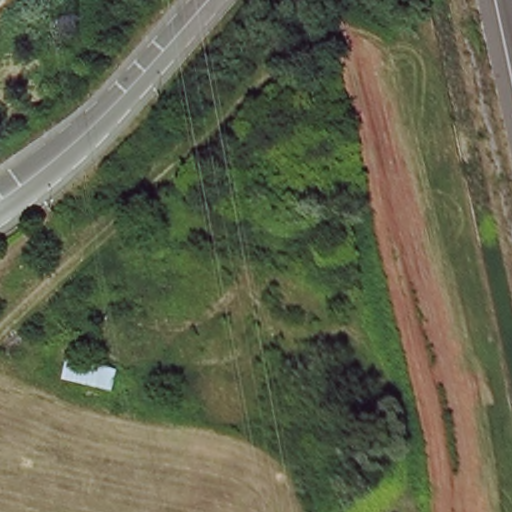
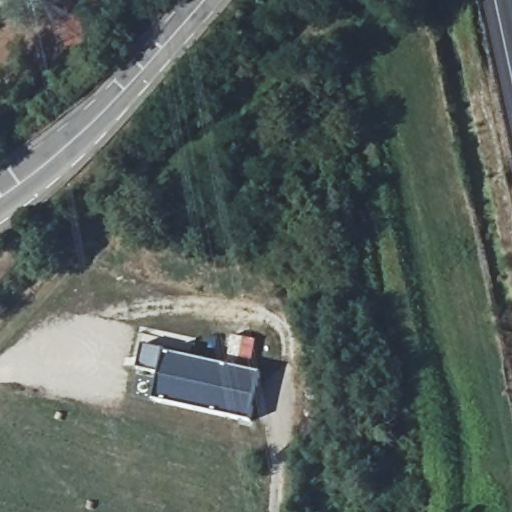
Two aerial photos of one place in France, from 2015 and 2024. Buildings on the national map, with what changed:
new [(227,359),(232,331),(257,335),(252,364),(260,365),(248,424),(150,403),(157,374),(137,368),(142,341),(227,359)]
demolished [(117,365),(109,391),(57,381),(65,355),(117,365)]

